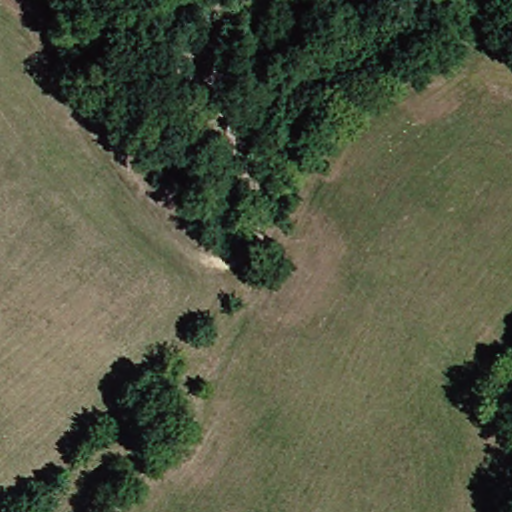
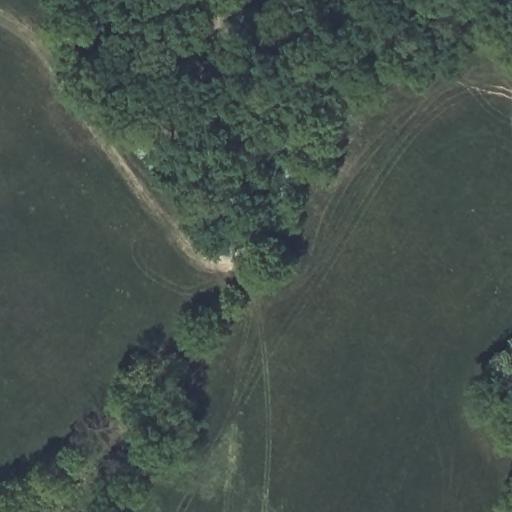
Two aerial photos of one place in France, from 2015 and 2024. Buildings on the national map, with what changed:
[]

